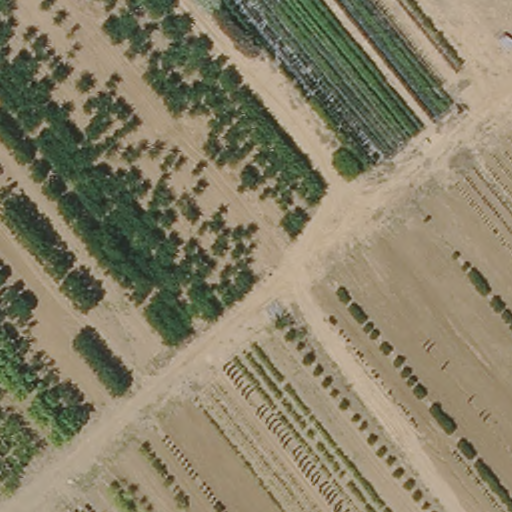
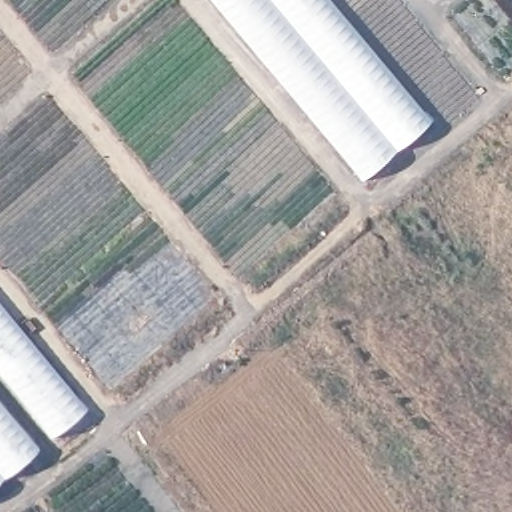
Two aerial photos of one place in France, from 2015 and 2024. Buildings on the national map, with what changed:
new [(433,120),(364,179),(214,0),(332,0),(433,120)]
new [(90,411),(54,442),(0,377),(0,304),(90,411)]
new [(38,448),(0,481),(0,402),(38,448)]

